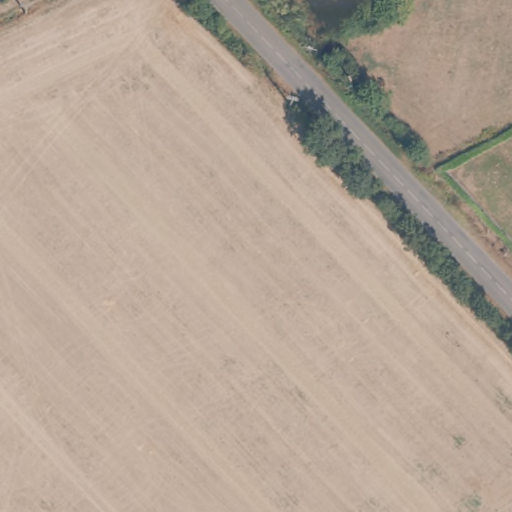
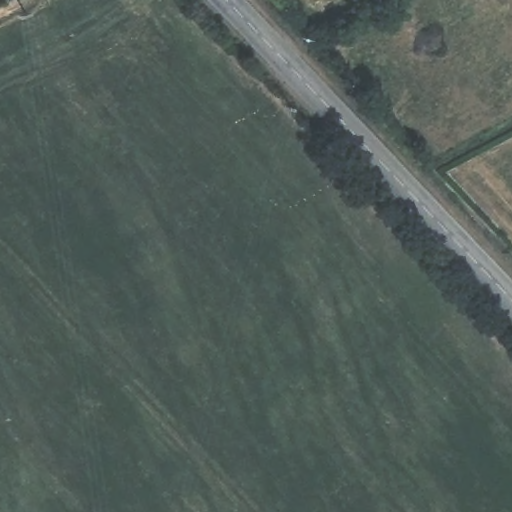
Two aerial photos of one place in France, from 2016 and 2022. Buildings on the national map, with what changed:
[]

